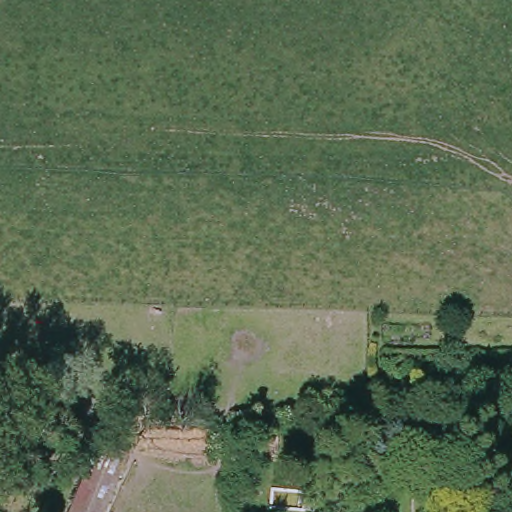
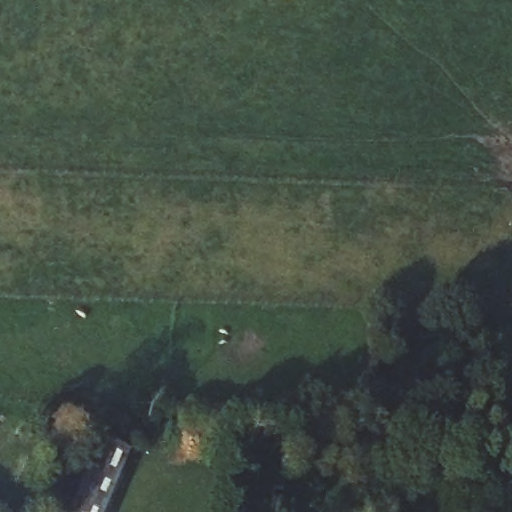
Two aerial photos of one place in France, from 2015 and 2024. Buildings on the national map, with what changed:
unchanged [(107,444),(90,512),(58,512),(77,437),(107,444)]

